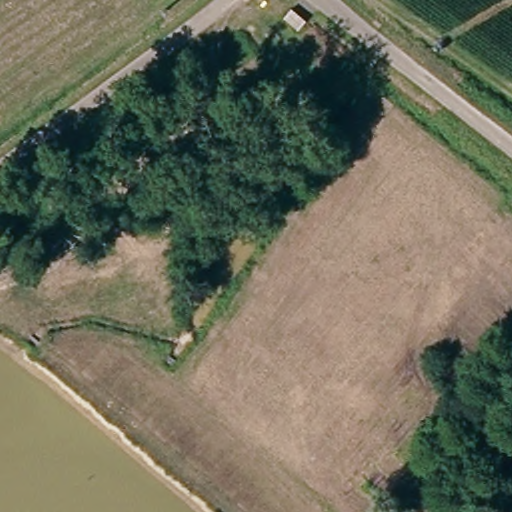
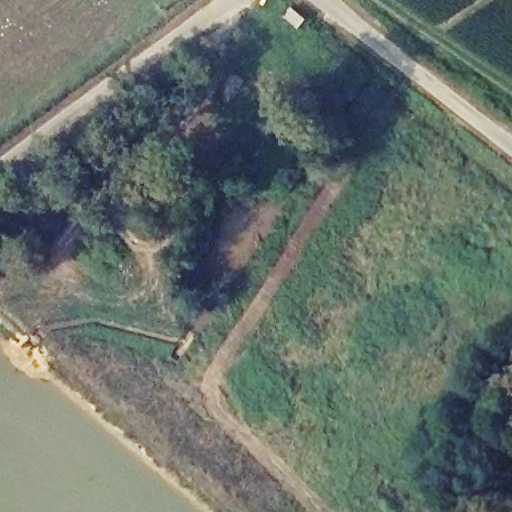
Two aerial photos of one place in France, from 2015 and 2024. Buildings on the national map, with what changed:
unchanged [(299,11),(289,24),(278,14),(285,1),(299,11)]
unchanged [(158,207),(168,195),(180,208),(170,218),(158,207)]

